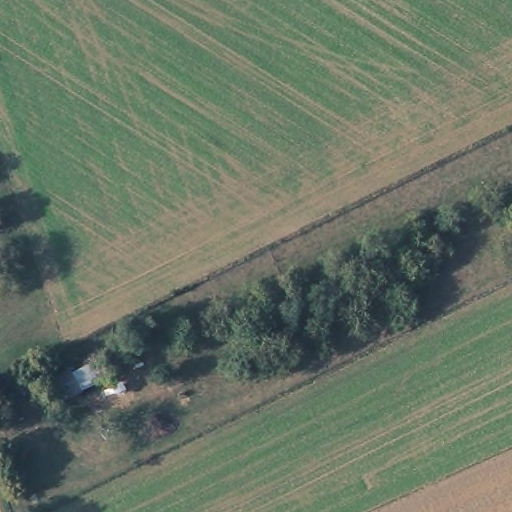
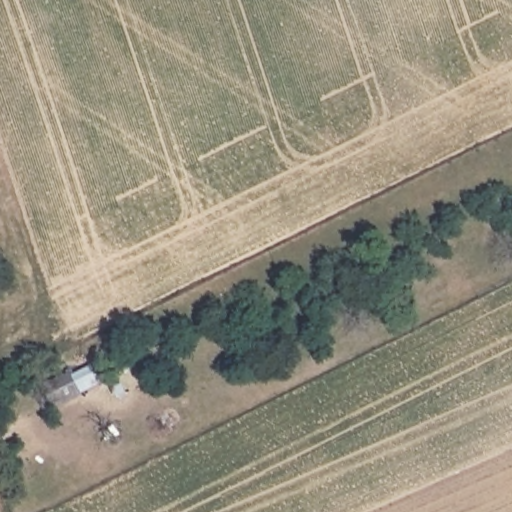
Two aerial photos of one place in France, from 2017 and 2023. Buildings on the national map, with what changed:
unchanged [(93,392),(45,416),(35,391),(83,370),(93,392)]

